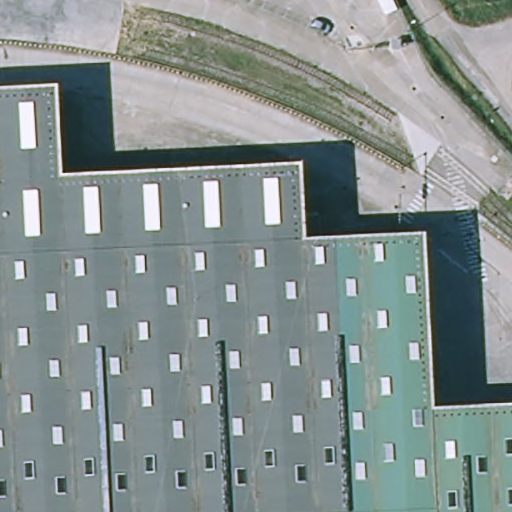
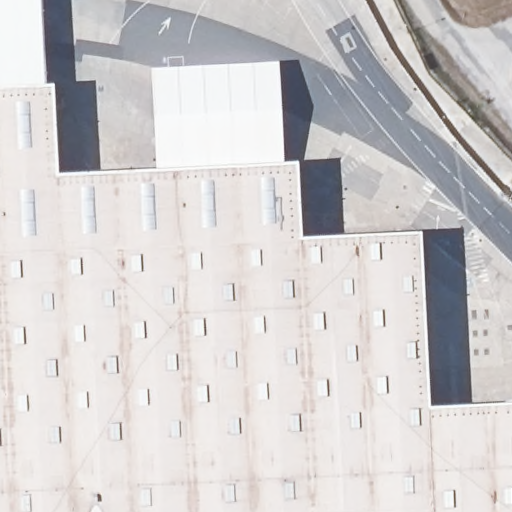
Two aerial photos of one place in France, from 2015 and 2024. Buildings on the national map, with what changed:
new [(42,0),(47,99),(0,101),(0,0),(42,0)]
new [(152,78),(279,71),(286,177),(157,184),(152,78)]
unchanged [(54,98),(59,189),(297,176),(301,236),(310,236),(311,250),(422,244),(430,419),(512,415),(512,512),(0,512),(0,101),(54,98)]

